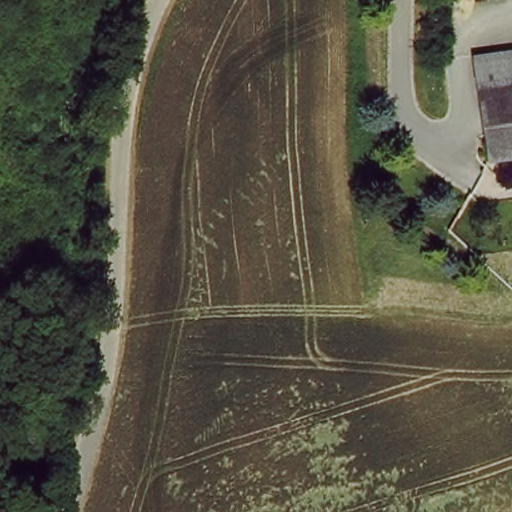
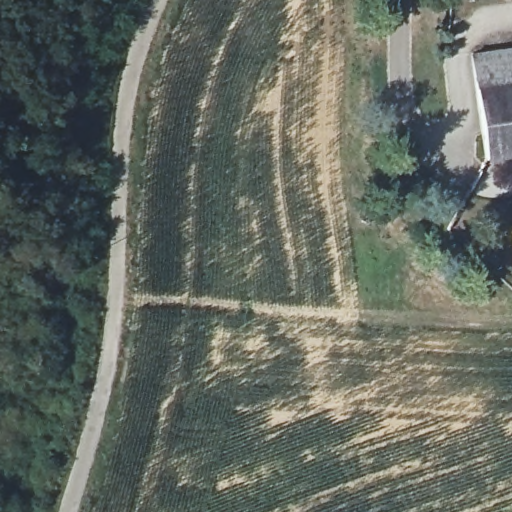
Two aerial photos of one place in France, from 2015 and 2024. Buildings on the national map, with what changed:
unchanged [(474,87),(469,52),(512,46),(512,82),(477,87),(474,87)]
unchanged [(477,87),(512,82),(512,156),(487,160),(477,87)]

